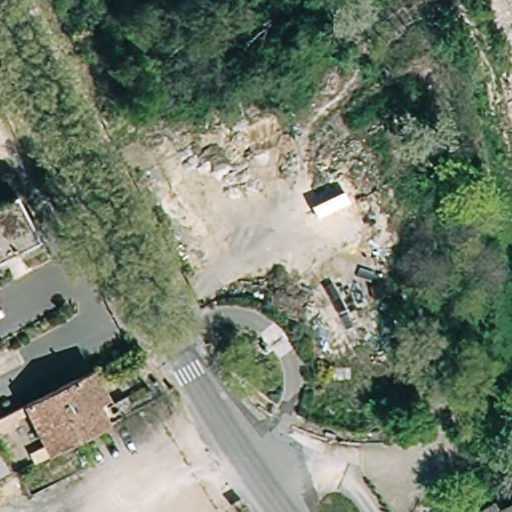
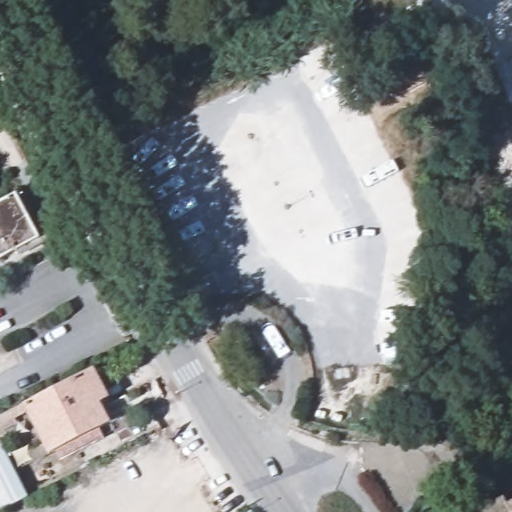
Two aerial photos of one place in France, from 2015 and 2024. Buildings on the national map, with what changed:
unchanged [(14,199),(37,242),(0,260),(0,206),(14,199)]
unchanged [(95,370),(95,374),(94,377),(92,380),(90,381),(111,422),(51,450),(46,440),(32,414),(14,423),(0,429),(0,414),(42,393),(92,368),(94,367),(95,370)]
new [(0,443),(28,497),(0,512),(0,443)]
unchanged [(512,504),(512,512),(478,512),(506,496),(512,504)]

